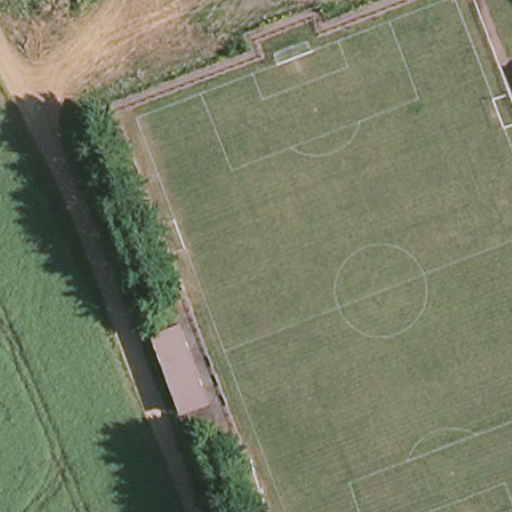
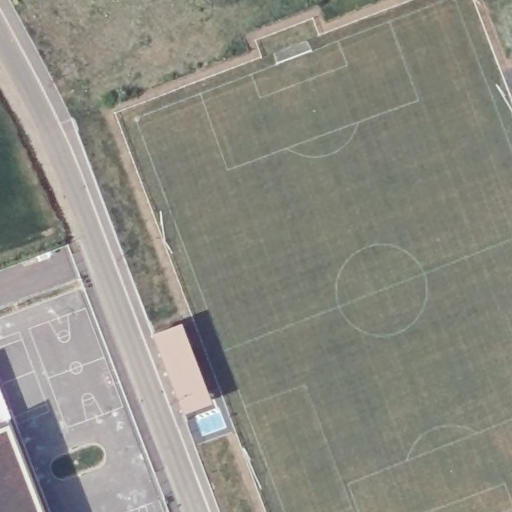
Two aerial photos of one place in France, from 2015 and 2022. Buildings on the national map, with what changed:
unchanged [(512,60),(512,67),(510,61),(512,60)]
unchanged [(205,401),(182,410),(154,332),(175,324),(205,401)]
new [(10,420),(5,423),(40,512),(0,512),(0,392),(10,420)]

